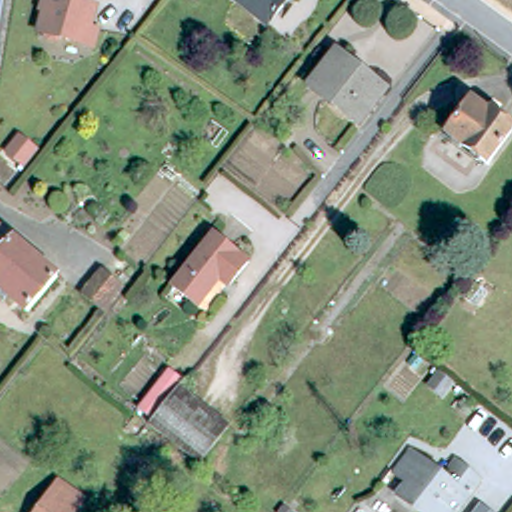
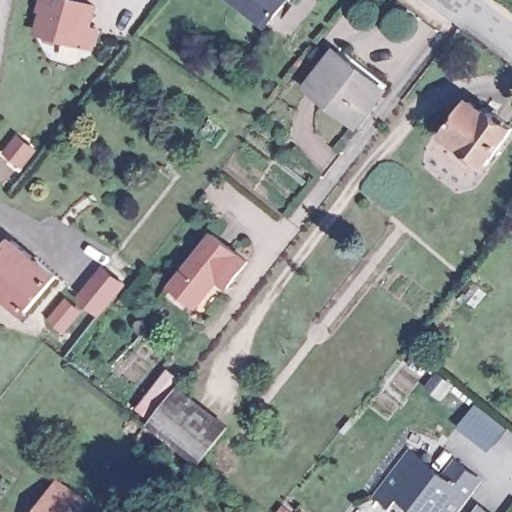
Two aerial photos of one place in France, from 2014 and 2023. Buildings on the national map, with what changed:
unchanged [(90,25),(98,28),(95,45),(67,38),(55,43),(51,40),(47,33),(41,31),(45,11),(42,10),(43,0),(76,0),(95,5),(90,25)]
unchanged [(244,0),(283,0),(267,19),(244,0)]
unchanged [(337,50),(386,85),(360,120),(312,84),(337,50)]
unchanged [(489,110),(492,106),(512,121),(512,125),(487,160),(455,136),(447,130),(472,97),(489,110)]
unchanged [(36,149),(23,165),(10,154),(22,138),(36,149)]
unchanged [(0,225),(57,271),(26,307),(0,285),(0,225)]
unchanged [(173,281),(214,228),(249,255),(229,281),(219,274),(198,300),(173,281)]
unchanged [(83,300),(102,277),(122,293),(102,316),(83,300)]
unchanged [(223,416),(193,453),(167,433),(147,418),(143,415),(173,377),(223,416)]
new [(507,427),(491,450),(460,424),(477,403),(507,427)]
unchanged [(406,489),(415,477),(400,467),(417,444),(450,472),(462,456),(486,476),(458,510),(457,512),(436,512),(406,489)]
unchanged [(79,507),(75,512),(39,512),(55,489),(79,507)]
new [(491,512),(472,512),(478,503),(491,512)]

